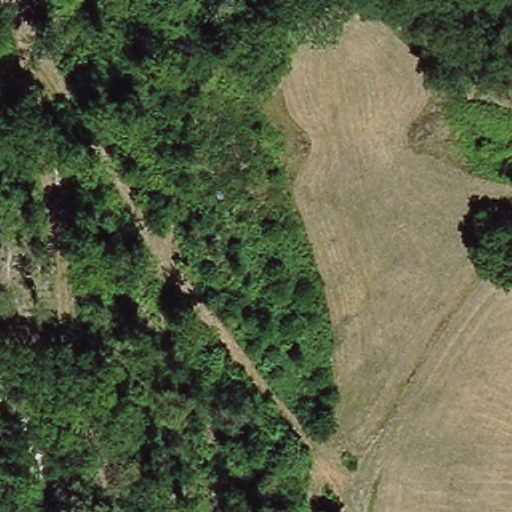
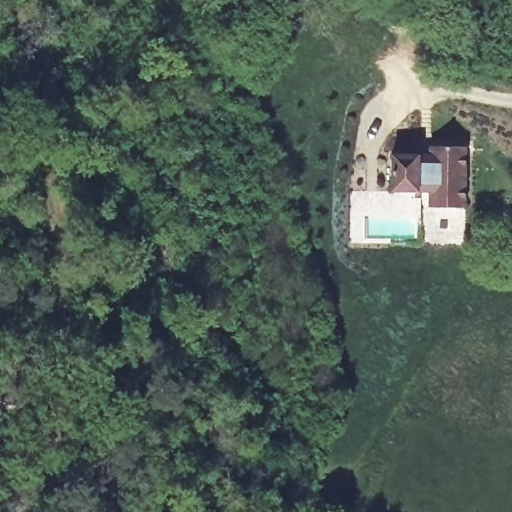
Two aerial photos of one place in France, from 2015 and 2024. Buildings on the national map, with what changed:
new [(429,192),(420,192),(421,156),(430,156),(431,146),(469,147),(466,209),(429,208),(429,192)]
new [(392,155),(421,156),(420,192),(391,192),(392,155)]

